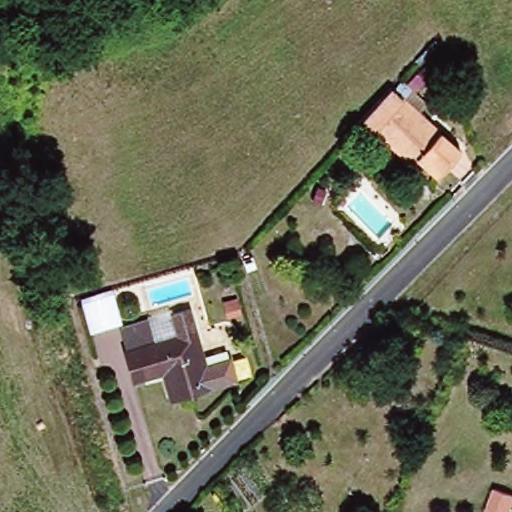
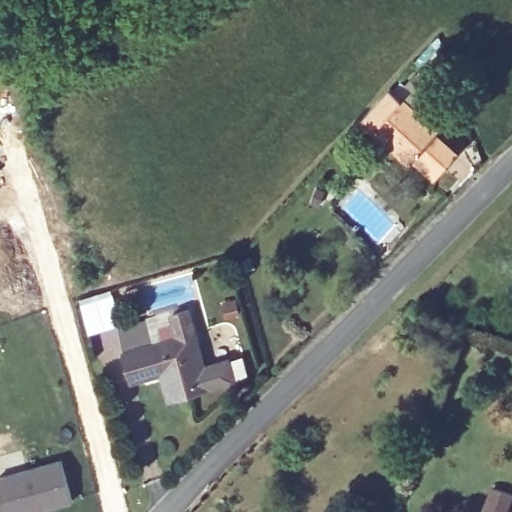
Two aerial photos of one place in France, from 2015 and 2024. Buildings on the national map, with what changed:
unchanged [(446,168),(424,147),(409,163),(362,121),(390,90),(460,152),(446,168)]
unchanged [(89,334),(81,304),(112,295),(120,325),(89,334)]
unchanged [(230,362),(234,381),(173,398),(165,368),(131,377),(123,350),(126,349),(121,331),(150,323),(155,344),(178,338),(172,317),(190,311),(206,368),(230,362)]
new [(65,455),(79,502),(44,512),(2,512),(0,506),(0,473),(65,455)]

